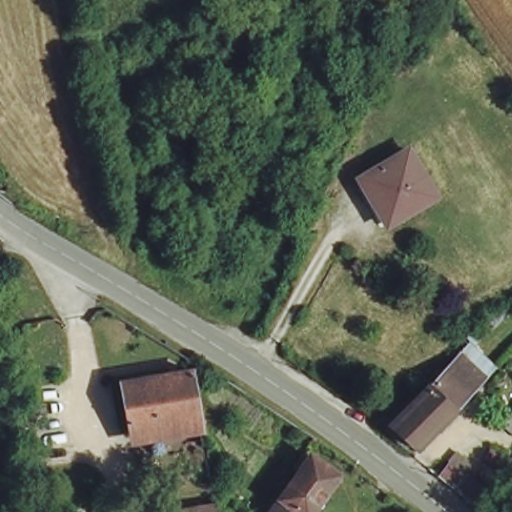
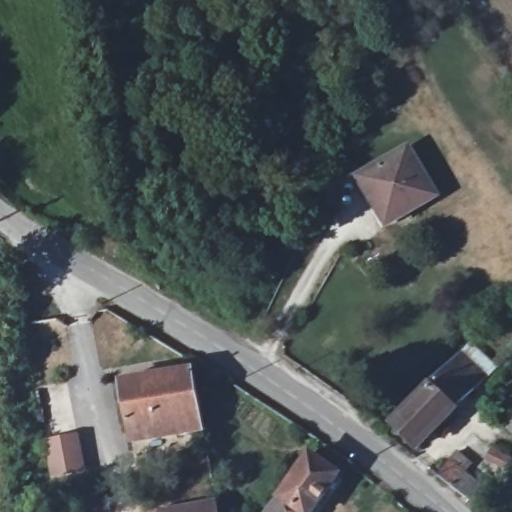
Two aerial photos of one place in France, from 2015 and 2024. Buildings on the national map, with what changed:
unchanged [(432,199),(390,226),(360,176),(401,150),(432,199)]
unchanged [(484,377),(407,448),(387,425),(463,355),(484,377)]
unchanged [(131,427),(122,379),(197,367),(205,416),(131,427)]
new [(44,440),(79,434),(87,472),(51,478),(44,440)]
unchanged [(332,465),(300,512),(261,512),(306,446),(332,465)]
unchanged [(512,457),(512,468),(488,459),(492,449),(512,457)]
unchanged [(453,461),(488,491),(476,504),(439,476),(453,461)]
unchanged [(220,496),(222,512),(162,512),(161,506),(220,496)]

